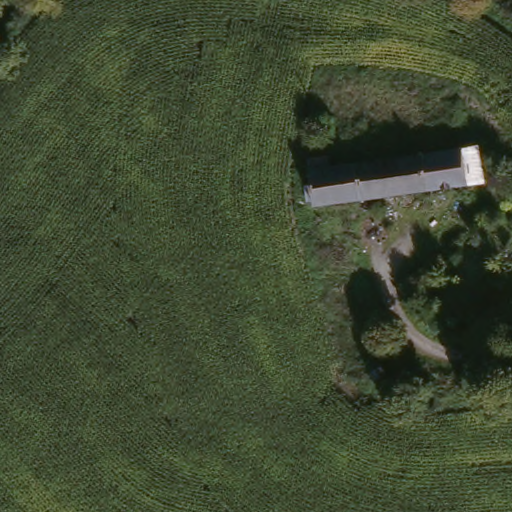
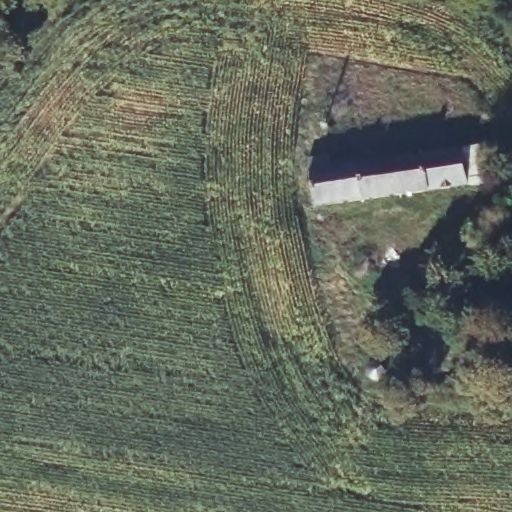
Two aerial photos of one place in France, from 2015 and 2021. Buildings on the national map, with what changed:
unchanged [(325,159),(328,171),(391,161),(475,149),(480,186),(389,199),(312,209),(309,190),(305,161),(325,159)]

